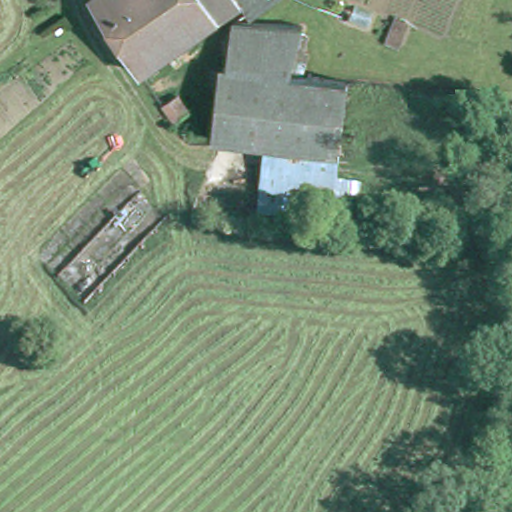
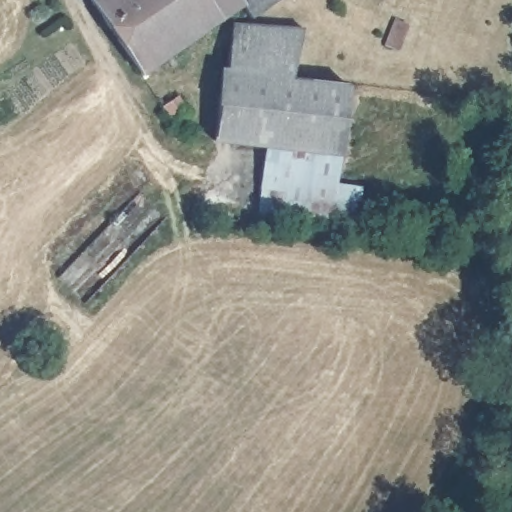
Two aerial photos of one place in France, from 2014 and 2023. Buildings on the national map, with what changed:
unchanged [(91,0),(278,0),(255,16),(249,3),(143,74),(90,1),(91,0)]
unchanged [(220,141),(237,23),(307,29),(302,78),(355,86),(347,156),(270,149),(220,141)]
unchanged [(347,156),(347,172),(367,177),(363,215),(261,207),(270,149),(347,156)]

